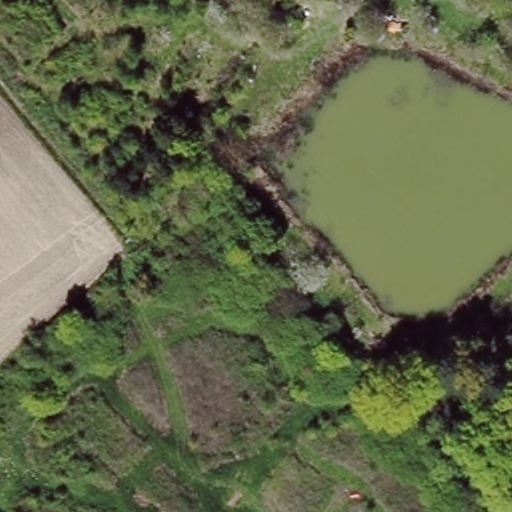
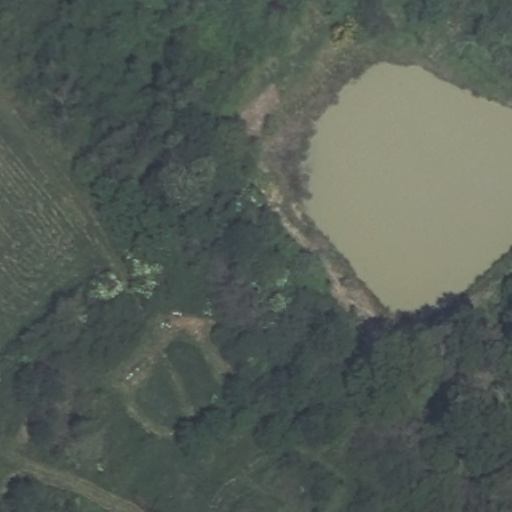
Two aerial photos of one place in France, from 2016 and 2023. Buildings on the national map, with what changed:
unchanged [(337,0),(343,0),(341,2),(337,0)]

